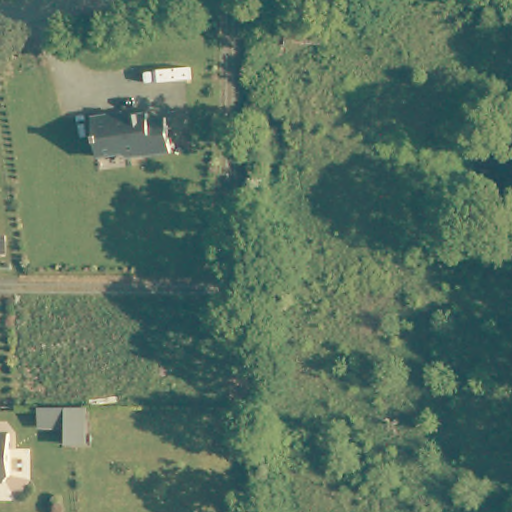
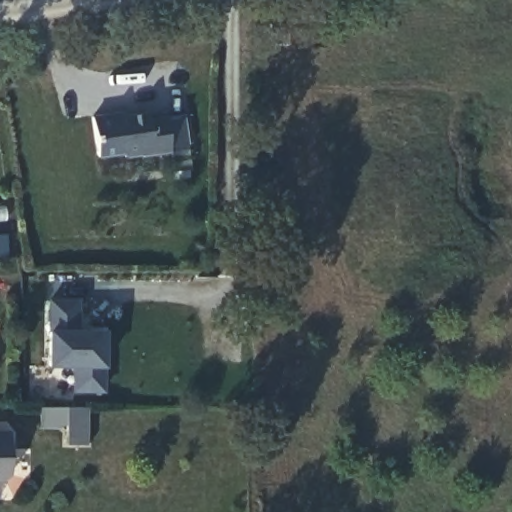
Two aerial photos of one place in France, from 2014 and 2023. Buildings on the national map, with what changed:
unchanged [(315,42),(283,42),(283,24),(315,24),(315,42)]
unchanged [(118,117),(152,112),(153,120),(170,117),(174,152),(144,156),(143,154),(128,156),(124,153),(101,156),(95,116),(118,114),(118,117)]
new [(80,298),(79,328),(105,329),(105,366),(103,393),(72,393),(73,367),(45,366),(46,331),(45,299),(80,298)]
unchanged [(70,425),(54,424),(43,424),(44,407),(54,407),(88,407),(89,442),(70,442),(70,425)]
unchanged [(9,437),(9,480),(4,484),(0,484),(0,437),(9,437)]

